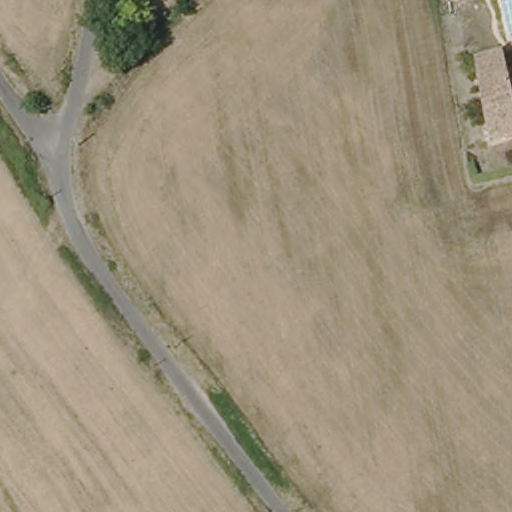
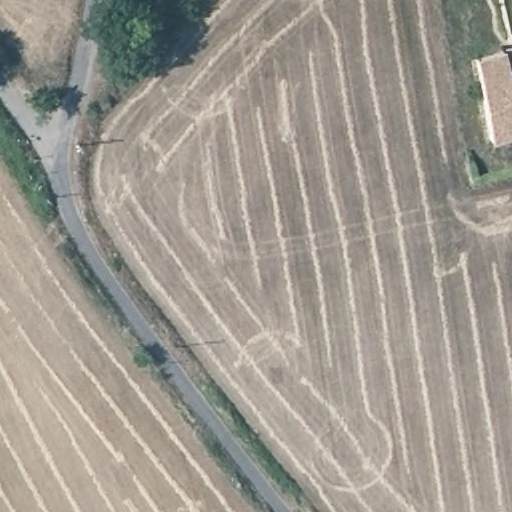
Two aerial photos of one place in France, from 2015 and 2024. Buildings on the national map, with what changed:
unchanged [(511,53),(512,57),(512,138),(502,142),(480,62),(511,53)]

